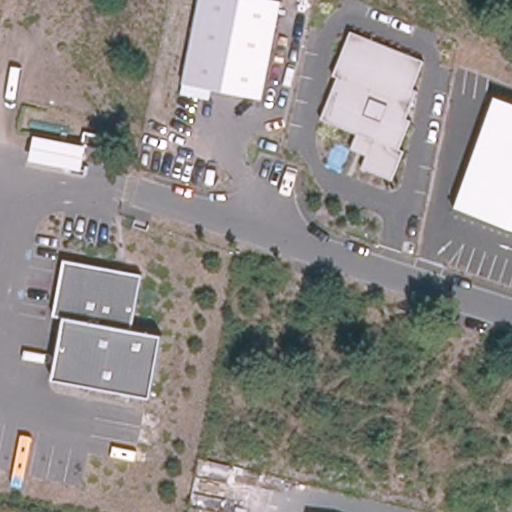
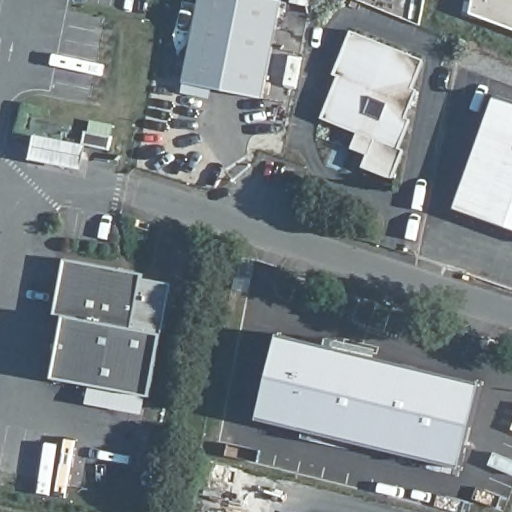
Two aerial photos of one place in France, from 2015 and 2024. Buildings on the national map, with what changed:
unchanged [(182,82),(198,0),(284,0),(265,99),(182,82)]
new [(512,0),(512,30),(471,15),(474,0),(512,0)]
unchanged [(415,85),(420,90),(407,117),(413,119),(401,147),(406,150),(395,180),(365,167),(370,155),(352,147),(358,132),(323,117),(340,76),(333,73),(350,30),(426,60),(415,85)]
unchanged [(452,207),(493,92),(512,98),(512,228),(452,207)]
unchanged [(82,171),(27,159),(30,135),(48,136),(49,127),(70,129),(71,139),(79,139),(80,129),(112,134),(109,150),(87,143),(82,171)]
unchanged [(51,378),(62,318),(51,317),(62,257),(141,272),(140,280),(170,286),(160,334),(150,397),(51,378)]
new [(481,385),(461,467),(258,418),(279,335),(481,385)]

